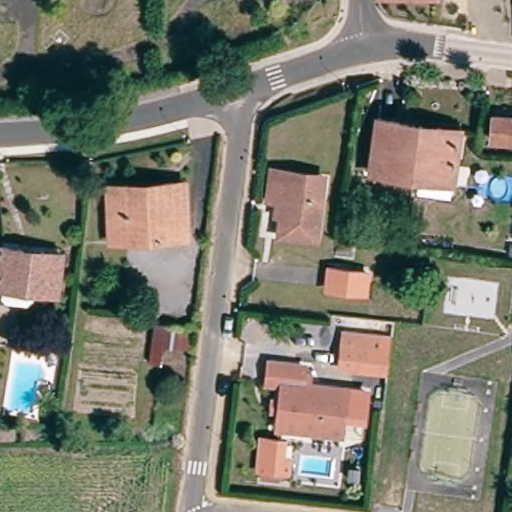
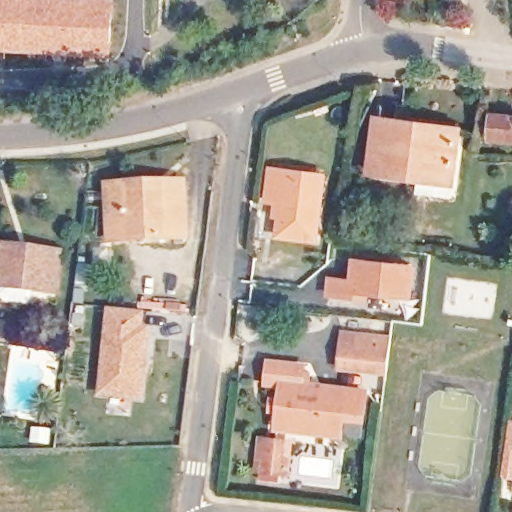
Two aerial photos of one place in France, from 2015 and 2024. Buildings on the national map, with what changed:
new [(115,0),(112,59),(0,52),(0,0),(115,0)]
unchanged [(512,139),(486,135),(490,114),(512,117),(512,139)]
unchanged [(373,170),(381,119),(412,124),(403,174),(373,170)]
unchanged [(412,124),(457,130),(450,181),(403,174),(412,124)]
unchanged [(327,200),(323,239),(280,235),(281,203),(265,200),(268,166),(283,167),(320,170),(319,182),(318,198),(327,200)]
unchanged [(186,239),(110,240),(112,184),(125,184),(170,185),(184,185),(186,239)]
unchanged [(62,295),(0,290),(0,246),(68,253),(62,295)]
new [(372,295),(372,302),(327,297),(329,276),(351,278),(353,257),(418,263),(415,300),(372,295)]
new [(147,312),(146,326),(151,327),(145,401),(98,397),(107,309),(147,312)]
demolished [(379,325),(371,375),(331,371),(335,320),(379,325)]
new [(337,370),(341,331),(393,336),(389,376),(337,370)]
unchanged [(301,380),(346,386),(341,431),(280,426),(284,381),(268,380),(269,357),(304,361),(301,380)]
unchanged [(370,387),(366,425),(342,421),(346,386),(370,387)]
new [(512,419),(512,478),(499,476),(509,418),(512,419)]
unchanged [(284,436),(281,470),(256,468),(259,434),(284,436)]

